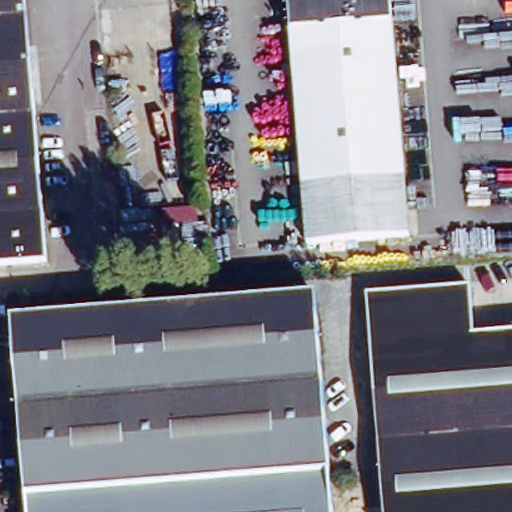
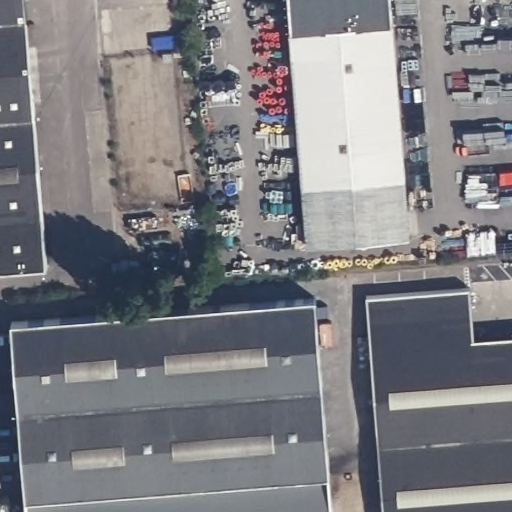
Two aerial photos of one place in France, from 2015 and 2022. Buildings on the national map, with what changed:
unchanged [(0,268),(0,0),(19,0),(45,264),(0,268)]
unchanged [(387,0),(410,244),(304,254),(287,0),(387,0)]
unchanged [(474,294),(478,343),(512,340),(512,512),(383,512),(367,303),(474,294)]
unchanged [(11,324),(314,299),(329,477),(26,500),(11,324)]
unchanged [(329,477),(331,512),(27,512),(26,500),(329,477)]

